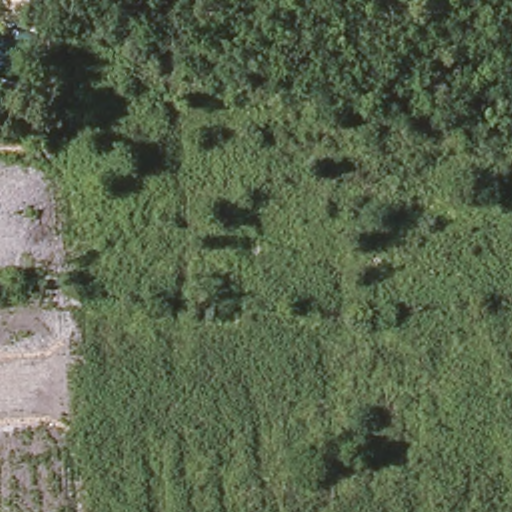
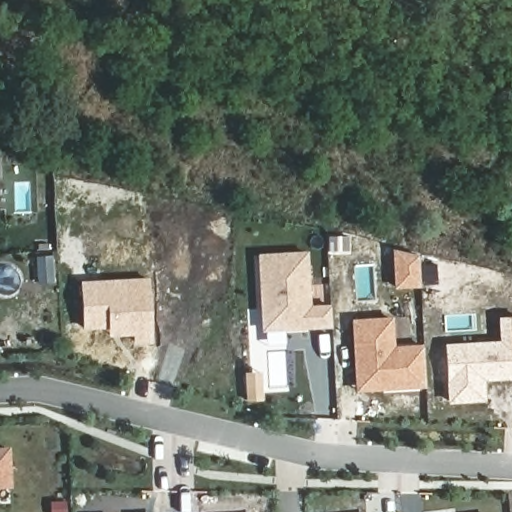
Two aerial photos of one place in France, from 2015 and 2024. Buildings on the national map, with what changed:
new [(257,255),(307,252),(311,305),(333,302),(335,328),(261,334),(257,255)]
new [(83,328),(78,283),(148,280),(153,343),(133,344),(133,337),(108,338),(108,327),(83,328)]
new [(394,347),(424,346),(426,388),(355,392),(352,320),(394,318),(394,347)]
new [(485,401),(448,404),(445,345),(499,341),(498,319),(512,318),(512,379),(484,381),(485,401)]
new [(12,487),(0,487),(0,448),(10,447),(12,487)]

